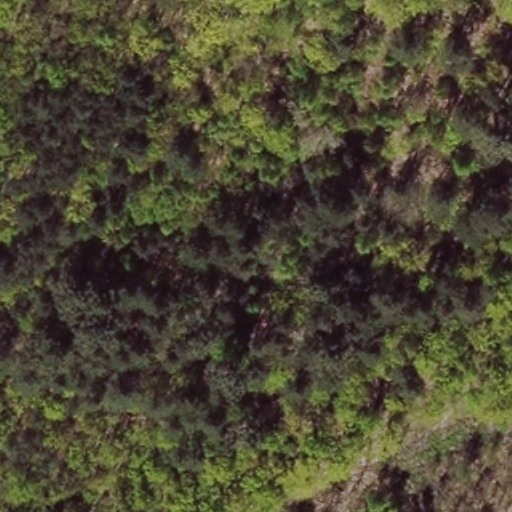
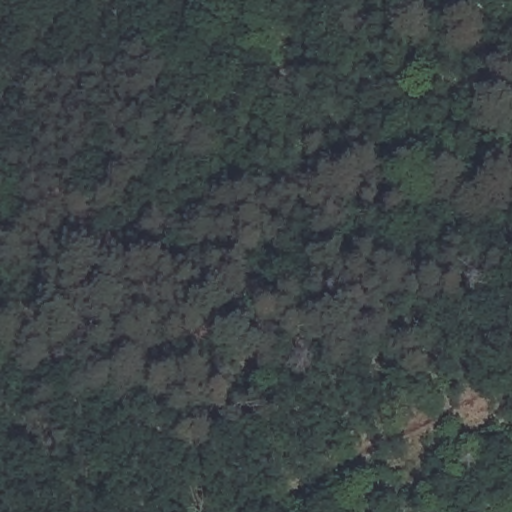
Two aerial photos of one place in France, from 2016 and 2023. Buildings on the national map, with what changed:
unchanged [(278,23),(295,53),(269,66),(252,36),(278,23)]

